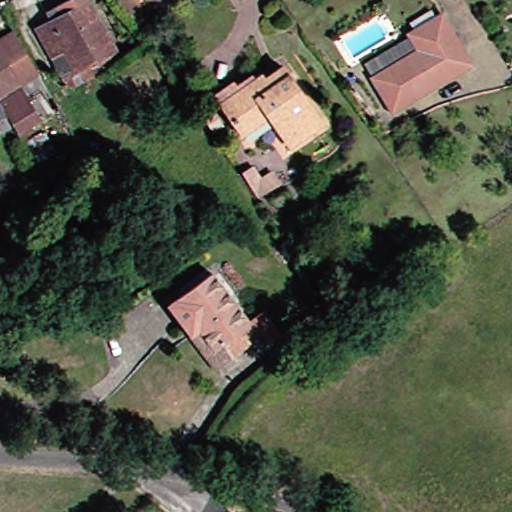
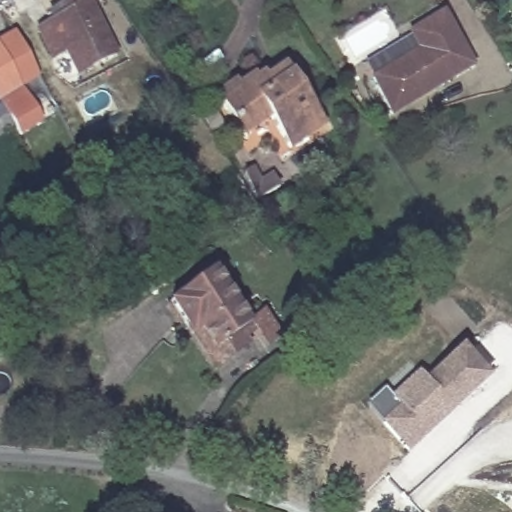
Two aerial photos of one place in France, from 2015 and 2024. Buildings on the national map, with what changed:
unchanged [(120,60),(81,81),(68,57),(57,63),(44,38),(92,11),(120,60)]
unchanged [(445,13),(475,65),(396,112),(375,77),(420,50),(411,33),(445,13)]
unchanged [(0,45),(0,41),(18,31),(44,73),(57,96),(37,108),(24,85),(0,45)]
unchanged [(24,85),(37,108),(44,120),(22,133),(17,125),(5,104),(0,96),(0,45),(24,85)]
unchanged [(267,84),(286,71),(291,79),(326,129),(293,151),(273,121),(246,139),(225,108),(226,106),(221,99),(236,88),(241,96),(265,80),(267,84)]
unchanged [(5,104),(17,125),(0,136),(0,96),(5,104)]
unchanged [(283,184),(260,198),(246,173),(256,167),(264,179),(276,172),(283,184)]
unchanged [(172,304),(215,271),(253,322),(219,348),(205,329),(196,335),(172,304)]
unchanged [(298,328),(321,310),(325,315),(332,309),(341,320),(333,326),(310,344),(298,328)]
unchanged [(250,338),(254,342),(220,368),(218,365),(196,335),(205,329),(219,348),(253,322),(256,320),(268,311),(273,318),(284,333),(273,341),(262,327),(250,337),(250,338)]
new [(386,403),(413,378),(420,386),(457,353),(483,382),(445,416),(439,409),(413,432),(420,440),(402,455),(377,427),(361,409),(378,393),(386,403)]

